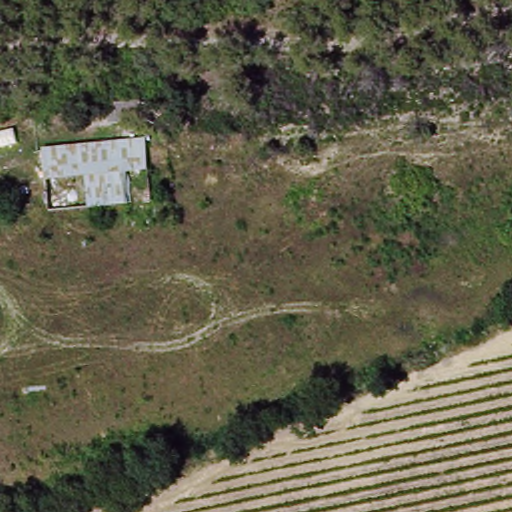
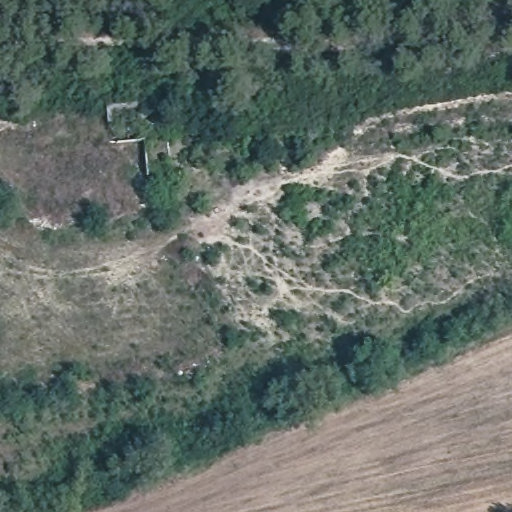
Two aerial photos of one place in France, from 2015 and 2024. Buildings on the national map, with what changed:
unchanged [(117,103),(121,121),(105,124),(101,105),(117,103)]
demolished [(143,136),(154,199),(44,210),(38,147),(143,136)]

